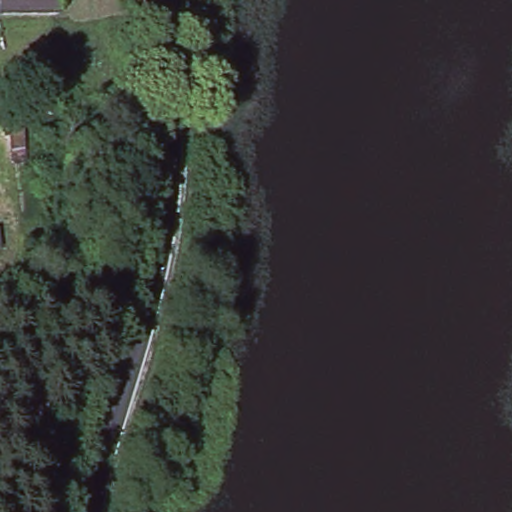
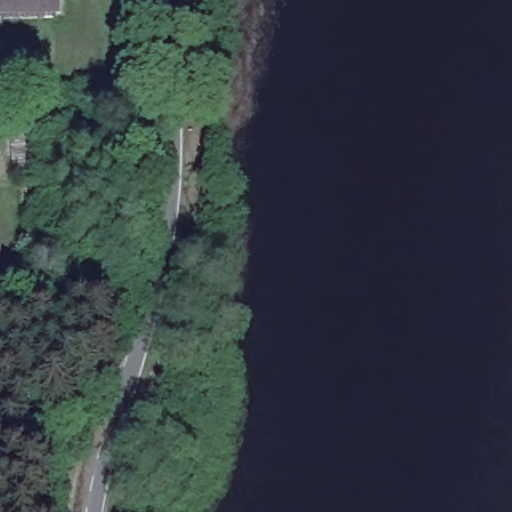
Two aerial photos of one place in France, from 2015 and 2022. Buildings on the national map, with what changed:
unchanged [(0,11),(0,0),(62,0),(62,11),(0,11)]

